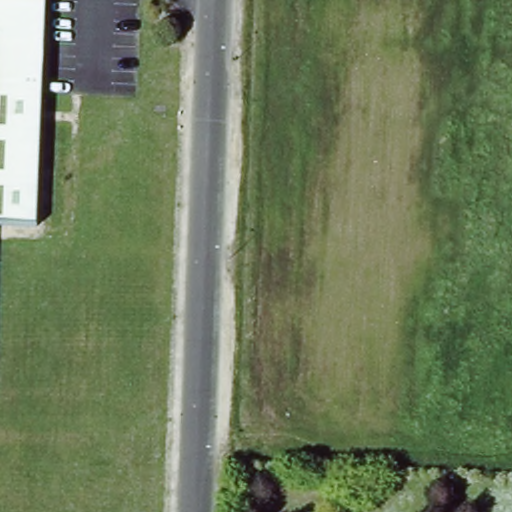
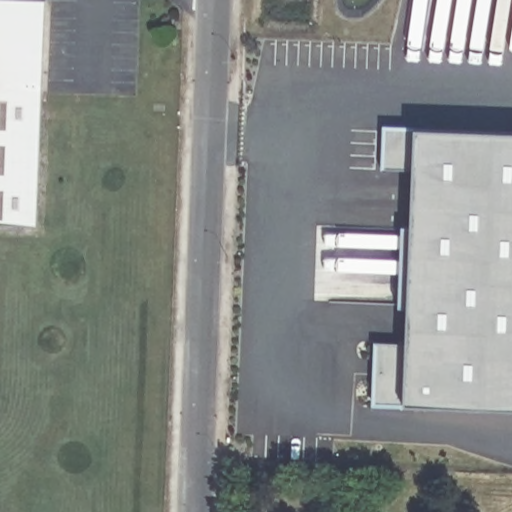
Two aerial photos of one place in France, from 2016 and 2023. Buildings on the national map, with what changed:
unchanged [(0,4),(6,5),(11,0),(40,0),(55,1),(41,229),(0,226),(0,4)]
new [(432,404),(432,405),(373,402),(374,341),(406,344),(413,171),(381,168),(382,124),(414,128),(512,132),(512,407),(432,404)]

